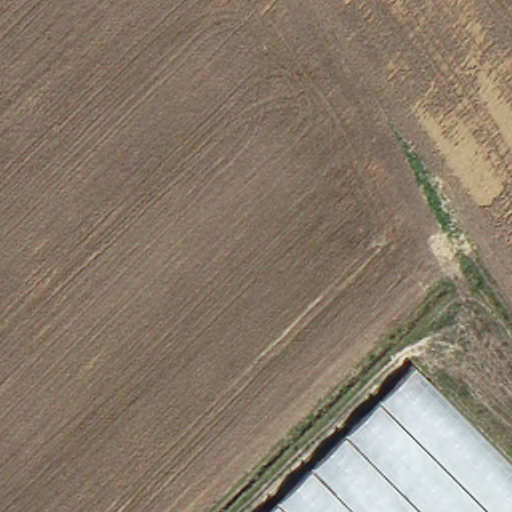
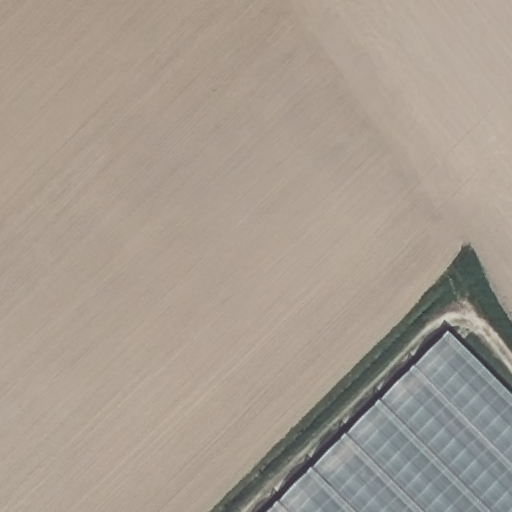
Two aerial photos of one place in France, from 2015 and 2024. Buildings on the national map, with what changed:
new [(512,396),(512,462),(416,365),(449,333),(512,396)]
unchanged [(512,462),(512,512),(271,512),(416,365),(512,462)]

